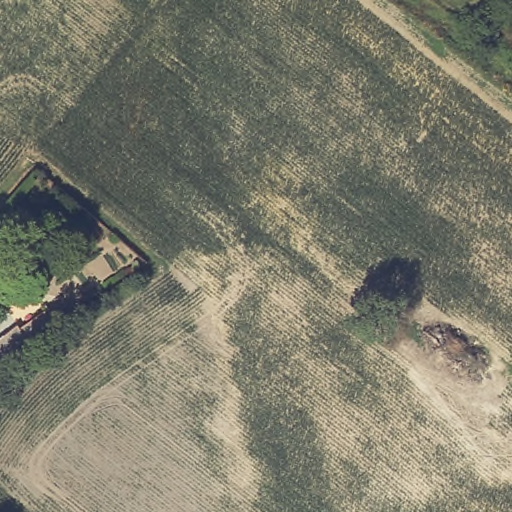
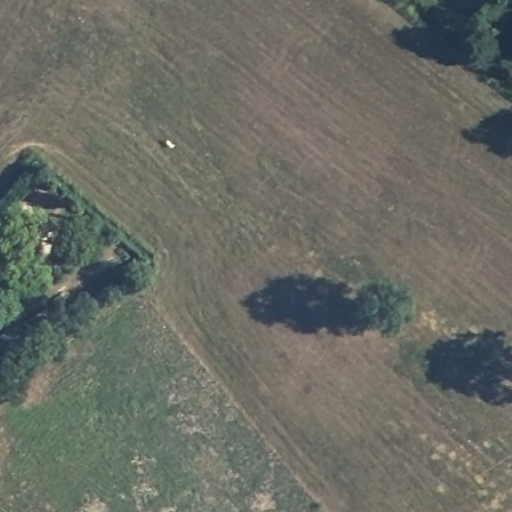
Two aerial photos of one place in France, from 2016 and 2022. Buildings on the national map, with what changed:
unchanged [(22,328),(49,308),(56,319),(44,326),(18,345),(0,361),(0,339),(18,323),(22,328)]

